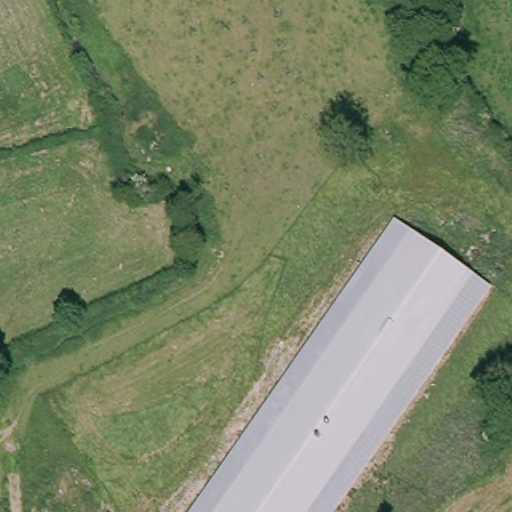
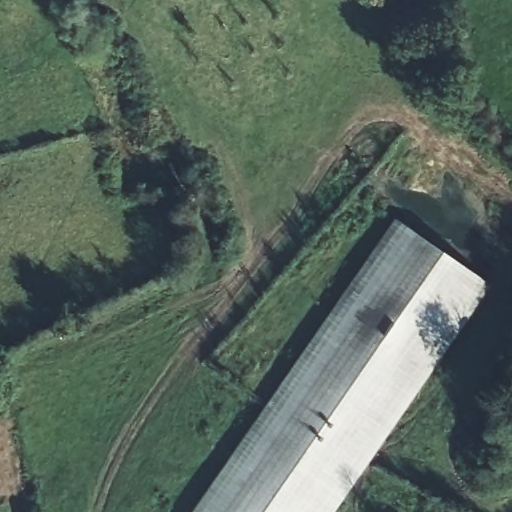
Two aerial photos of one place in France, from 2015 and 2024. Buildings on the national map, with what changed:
unchanged [(331,512),(193,512),(396,221),(490,283),(331,512)]

